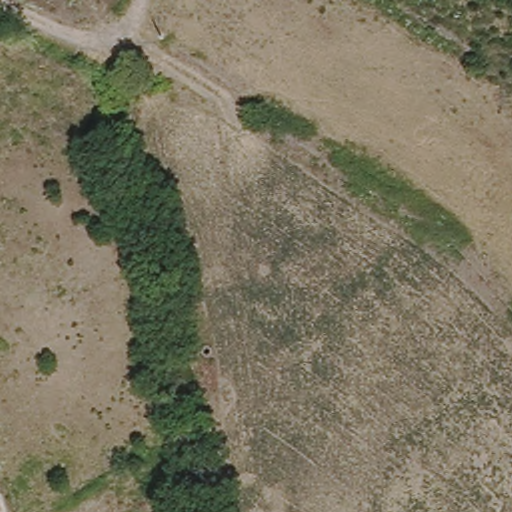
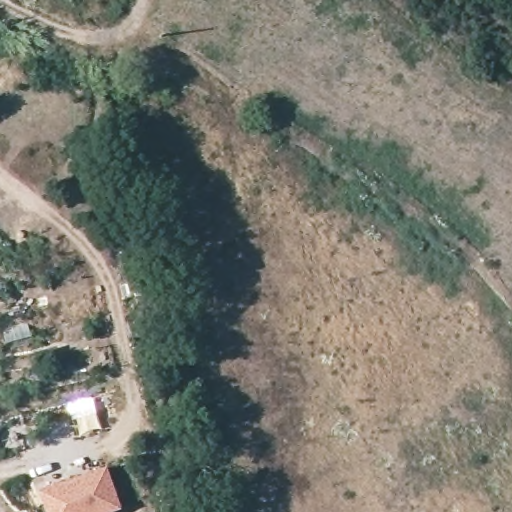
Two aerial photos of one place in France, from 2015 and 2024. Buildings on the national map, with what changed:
new [(118,512),(37,512),(45,510),(39,490),(108,466),(121,511),(118,512)]

